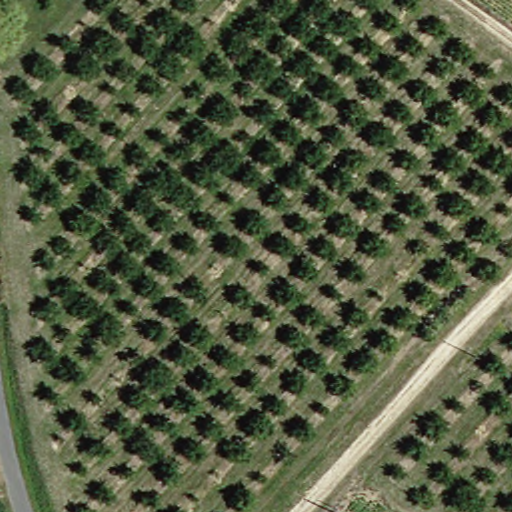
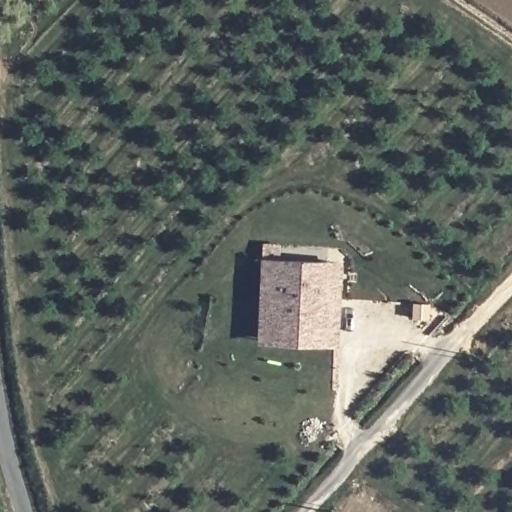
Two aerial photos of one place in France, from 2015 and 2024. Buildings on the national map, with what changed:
new [(260,259),(342,263),(339,348),(255,346),(260,259)]

